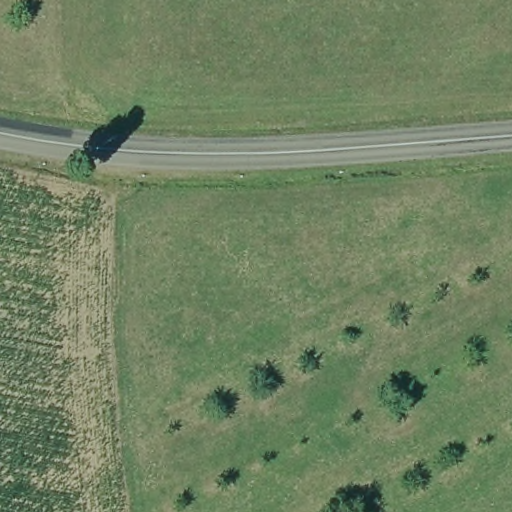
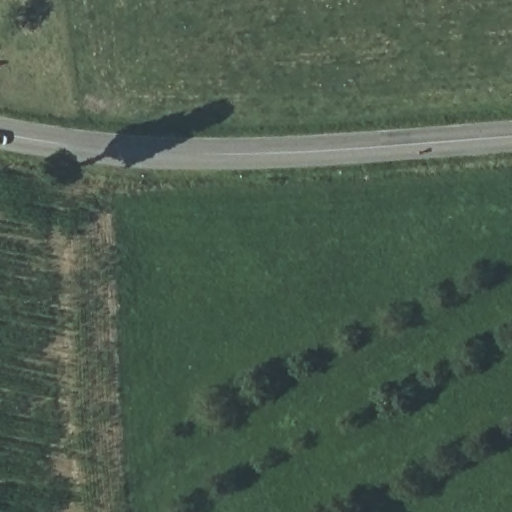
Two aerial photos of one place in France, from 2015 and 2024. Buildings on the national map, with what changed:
[]

